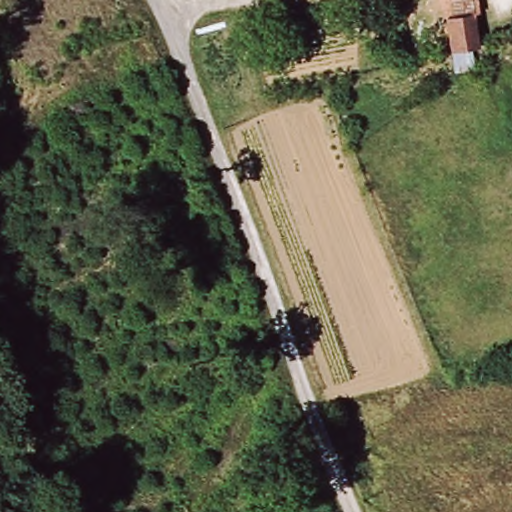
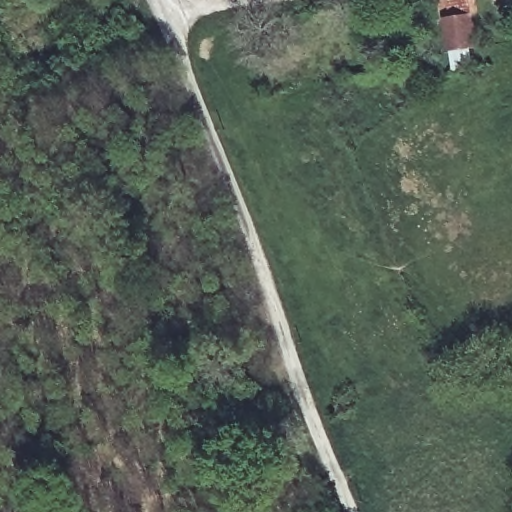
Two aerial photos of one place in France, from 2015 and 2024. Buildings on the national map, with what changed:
unchanged [(450,0),(478,0),(480,11),(486,47),(458,52),(452,15),(450,0)]

